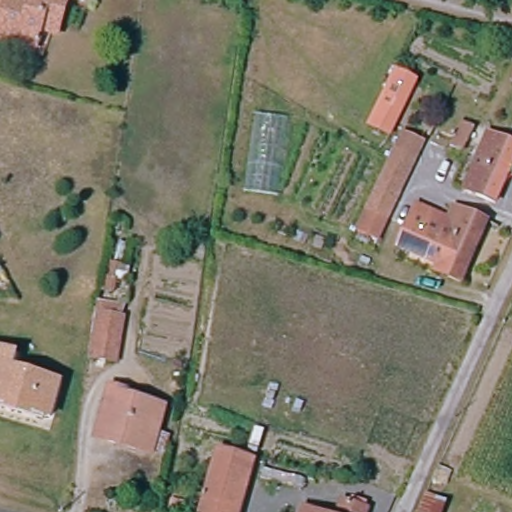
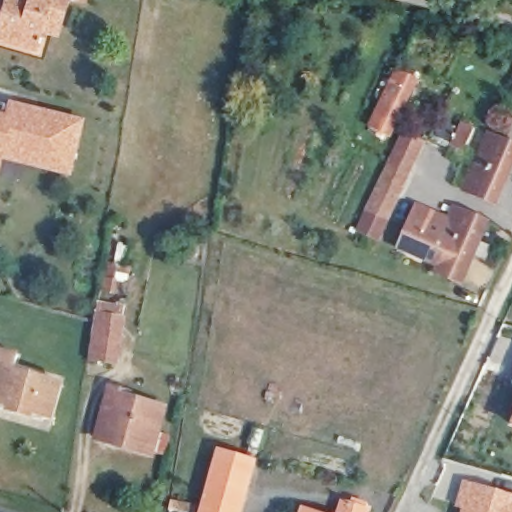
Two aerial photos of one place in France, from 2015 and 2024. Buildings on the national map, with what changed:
unchanged [(67,0),(58,35),(41,30),(39,39),(4,30),(13,0),(24,0),(30,2),(31,0),(88,0),(86,6),(67,0)]
unchanged [(410,86),(384,139),(368,131),(394,78),(410,86)]
new [(9,100),(87,119),(73,178),(5,161),(0,180),(0,111),(7,113),(9,100)]
new [(279,198),(244,193),(254,116),(289,119),(279,198)]
unchanged [(362,222),(369,206),(391,159),(404,130),(421,139),(408,165),(385,214),(378,229),(362,222)]
unchanged [(494,200),(463,187),(488,130),(512,141),(512,159),(494,200)]
unchanged [(468,139),(462,152),(450,147),(457,133),(468,139)]
unchanged [(394,250),(399,243),(422,194),(453,208),(455,204),(489,219),(466,268),(459,281),(394,250)]
unchanged [(114,290),(102,289),(104,275),(116,277),(114,290)]
unchanged [(112,359),(90,356),(98,311),(118,314),(112,359)]
unchanged [(16,365),(36,371),(35,376),(61,384),(51,418),(0,402),(0,350),(19,356),(16,365)]
unchanged [(149,454),(95,441),(109,389),(125,394),(123,400),(161,411),(149,454)]
new [(509,426),(512,419),(512,427),(509,426)]
unchanged [(216,472),(222,455),(253,466),(249,480),(238,512),(203,512),(216,472)]
new [(512,494),(512,512),(461,512),(462,509),(457,508),(466,481),(512,494)]
unchanged [(344,505),(361,512),(341,512),(344,505)]

